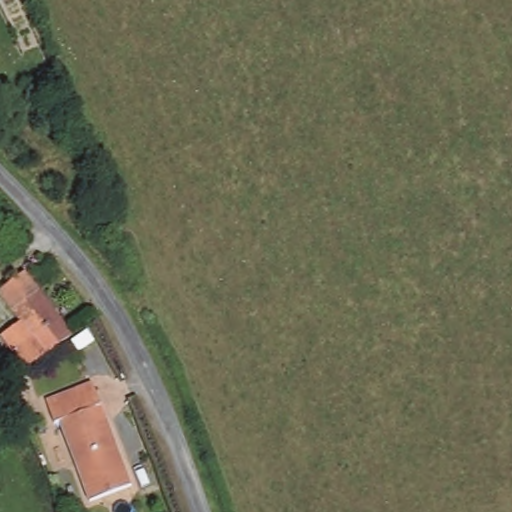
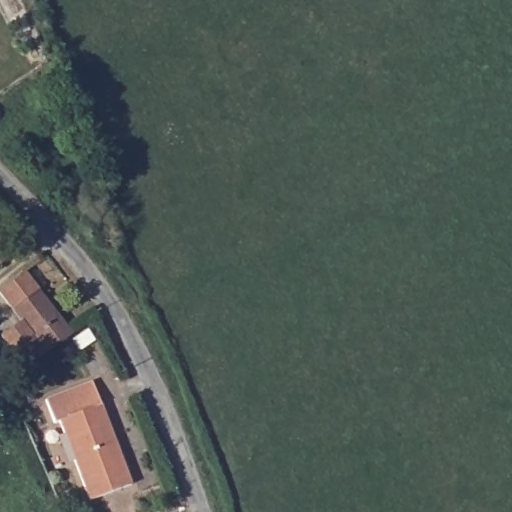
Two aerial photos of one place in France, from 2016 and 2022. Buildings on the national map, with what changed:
unchanged [(12,256),(0,265),(0,245),(2,244),(12,256)]
unchanged [(28,273),(77,337),(29,371),(16,351),(26,343),(17,330),(25,324),(2,292),(28,273)]
unchanged [(52,421),(44,400),(90,382),(132,485),(90,501),(57,419),(52,421)]

